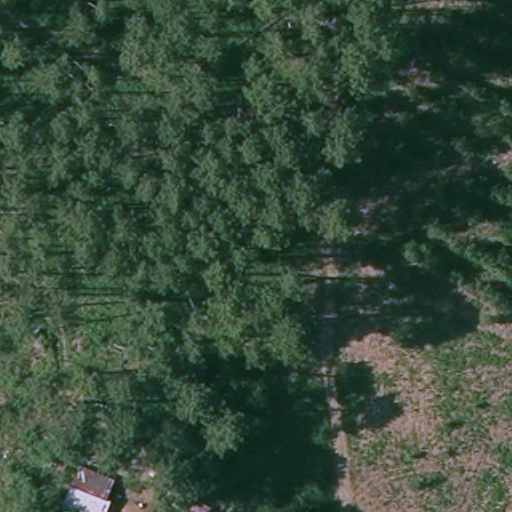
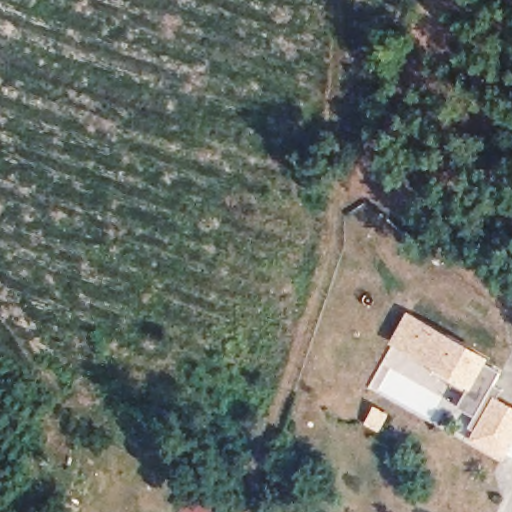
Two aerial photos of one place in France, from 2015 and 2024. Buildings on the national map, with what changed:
new [(491,358),(487,365),(501,372),(493,386),(502,391),(500,398),(512,405),(512,448),(505,460),(470,441),(475,432),(470,428),(476,417),(458,407),(467,391),(434,374),(438,369),(391,343),(408,312),(491,358)]
unchanged [(173,491),(193,497),(188,512),(178,512),(167,508),(173,491)]

